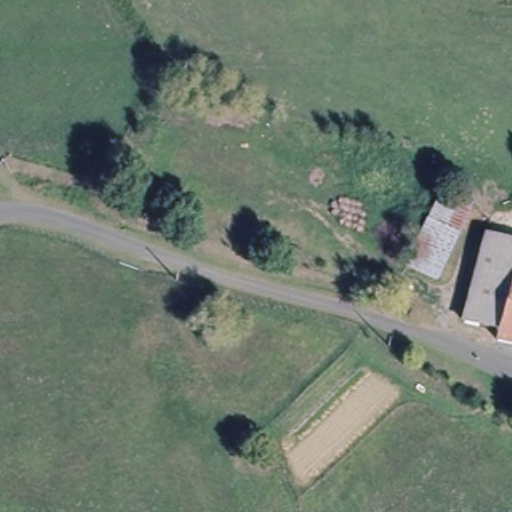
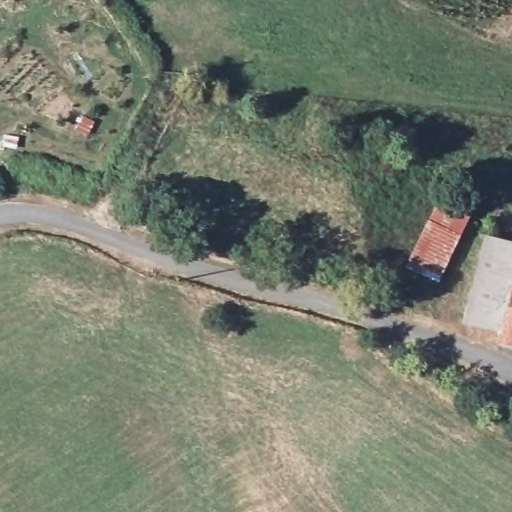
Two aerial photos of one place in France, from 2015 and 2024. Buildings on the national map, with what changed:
unchanged [(443,187),(478,207),(438,278),(401,262),(443,187)]
unchanged [(504,335),(506,327),(472,319),(492,233),(512,239),(512,337),(504,335)]

